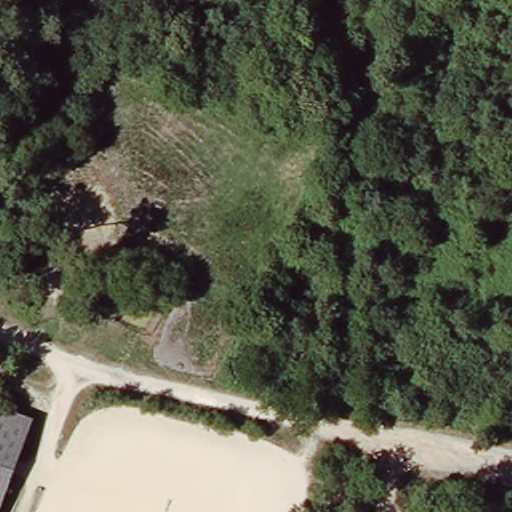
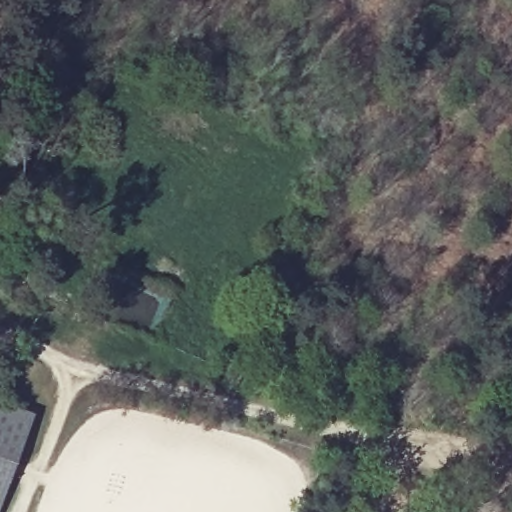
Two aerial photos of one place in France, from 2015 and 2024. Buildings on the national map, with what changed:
unchanged [(0,502),(0,412),(30,423),(0,502)]

